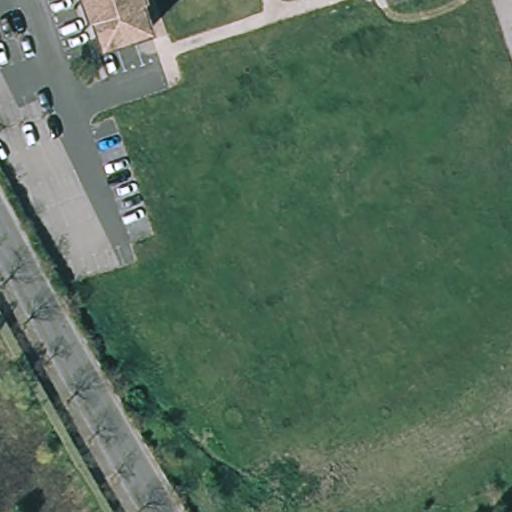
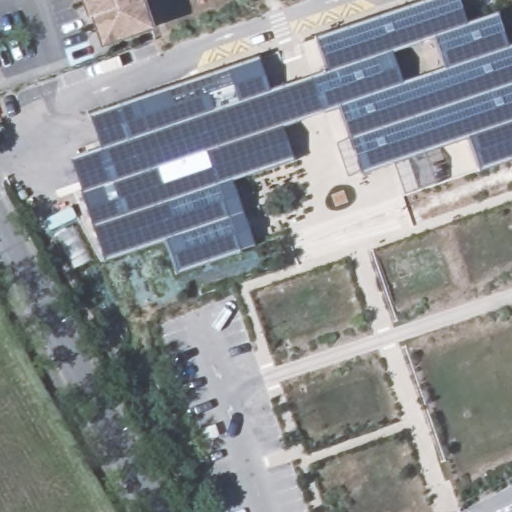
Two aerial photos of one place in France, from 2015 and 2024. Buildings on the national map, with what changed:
new [(269,91),(326,71),(315,38),(426,0),(459,0),(467,23),(497,13),(508,47),(512,46),(512,161),(479,172),(468,138),(425,153),(437,185),(404,197),(393,163),(346,179),(334,140),(349,135),(339,107),(282,127),(293,160),(231,181),(253,247),(176,273),(165,239),(103,262),(69,158),(100,148),(88,114),(258,57),(269,91)]
unchanged [(80,16),(78,17),(72,0),(135,0),(144,27),(90,46),(80,16)]

